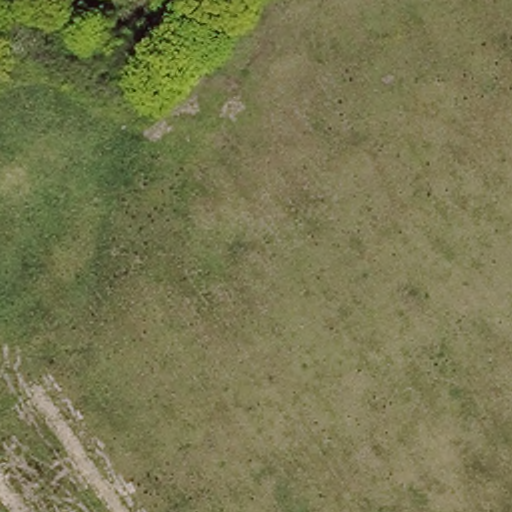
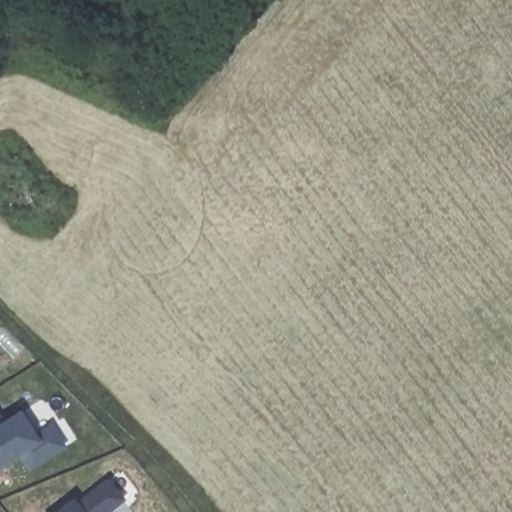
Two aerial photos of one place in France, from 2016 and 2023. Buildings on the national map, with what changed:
new [(27,472),(17,458),(0,469),(0,418),(3,422),(18,413),(33,433),(50,424),(65,448),(27,472)]
new [(111,512),(59,512),(73,501),(77,503),(108,479),(125,501),(111,512)]

